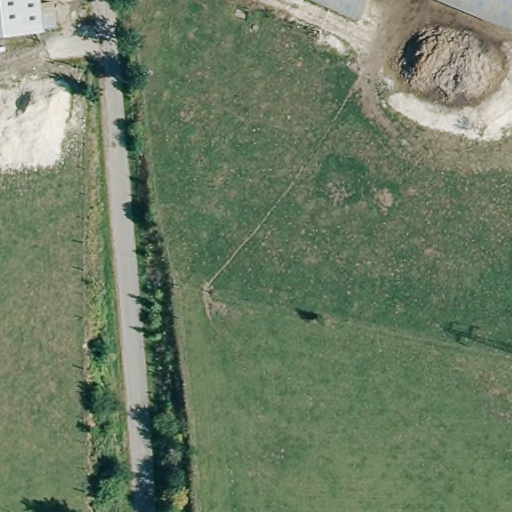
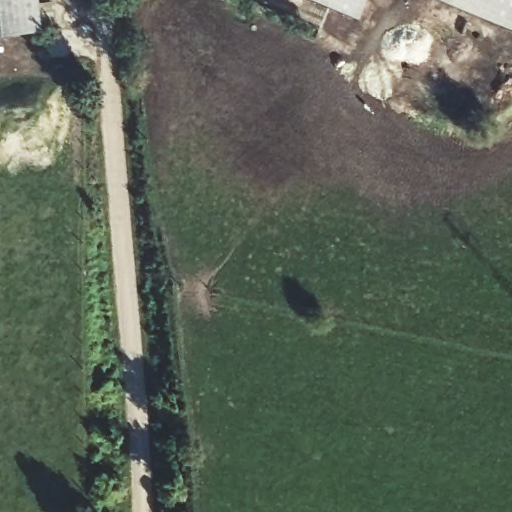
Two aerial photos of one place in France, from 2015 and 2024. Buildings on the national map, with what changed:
unchanged [(56,26),(44,27),(45,31),(0,36),(0,0),(55,0),(56,26)]
unchanged [(360,23),(306,0),(370,0),(360,23)]
unchanged [(512,29),(440,0),(512,0),(512,29)]

